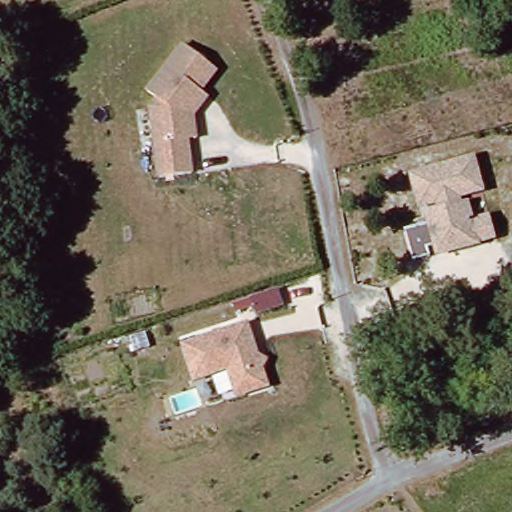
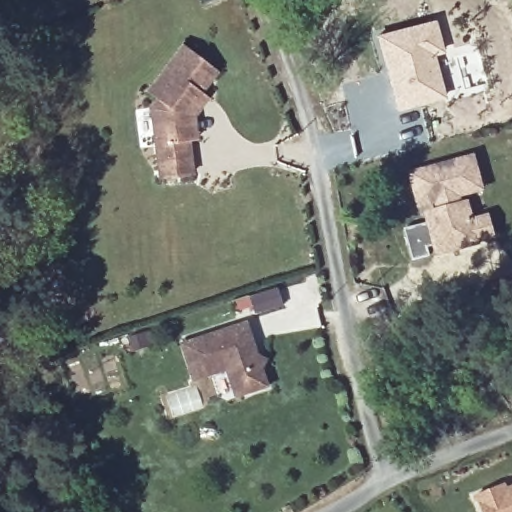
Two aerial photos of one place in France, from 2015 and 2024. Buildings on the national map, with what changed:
new [(371,34),(430,17),(440,53),(431,56),(442,99),(393,110),(371,34)]
unchanged [(194,116),(196,139),(188,140),(192,175),(161,179),(152,109),(157,101),(148,93),(184,45),(217,70),(201,90),(207,96),(194,116)]
unchanged [(475,153),(485,190),(466,195),(470,214),(487,210),(495,239),(436,255),(432,241),(425,244),(428,253),(412,259),(404,227),(425,221),(420,205),(416,205),(407,170),(475,153)]
unchanged [(246,295),(276,285),(283,306),(253,317),(246,295)]
unchanged [(269,389),(236,400),(227,370),(195,381),(181,345),(248,322),(269,389)]
new [(512,487),(512,512),(485,512),(477,495),(505,482),(508,490),(512,487)]

